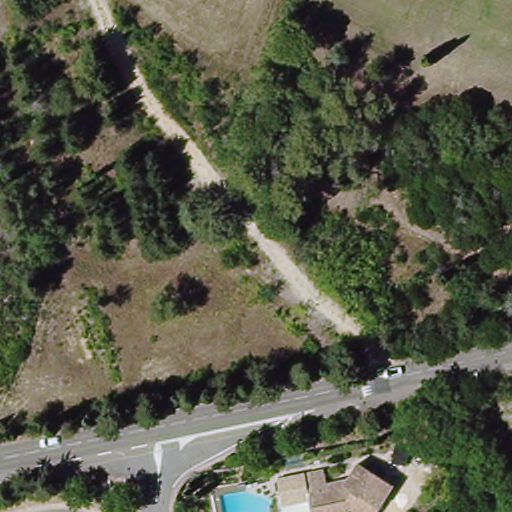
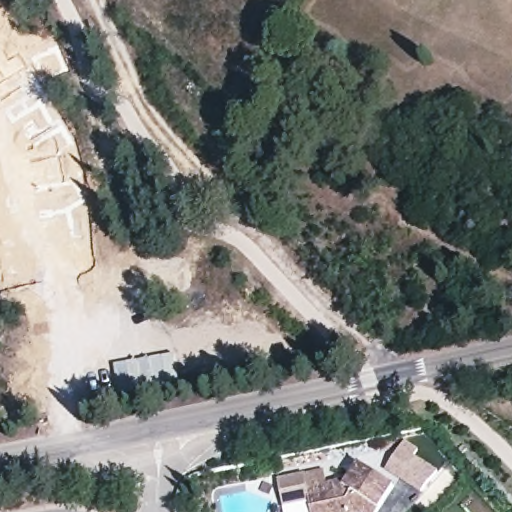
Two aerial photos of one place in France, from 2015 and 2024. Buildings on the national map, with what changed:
new [(385,470),(405,440),(419,448),(414,456),(438,471),(422,495),(385,470)]
unchanged [(291,507),(284,507),(279,478),(326,470),(329,492),(333,492),(332,483),(349,481),(359,467),(394,492),(380,512),(292,512),(291,507)]

